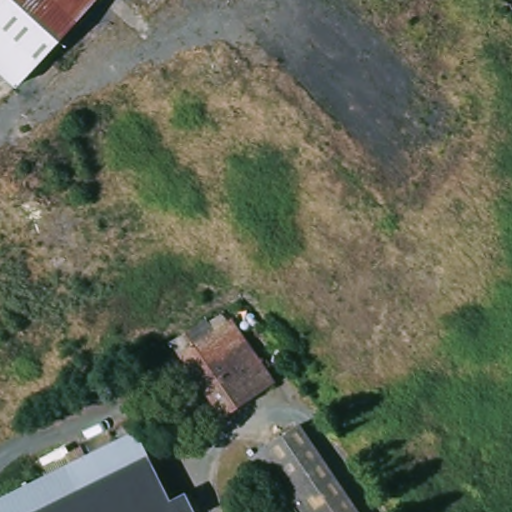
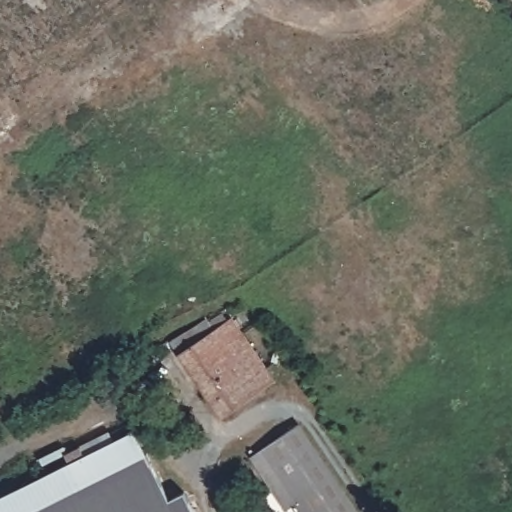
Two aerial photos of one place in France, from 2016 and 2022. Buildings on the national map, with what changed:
demolished [(0,68),(0,0),(89,0),(14,80),(0,68)]
unchanged [(231,318),(275,381),(220,415),(177,352),(231,318)]
unchanged [(289,422),(317,465),(282,487),(254,446),(289,422)]
unchanged [(56,468),(126,433),(150,482),(163,475),(175,498),(162,505),(166,512),(0,512),(0,498),(56,468)]
unchanged [(282,487),(317,465),(331,486),(349,512),(299,512),(282,487)]

